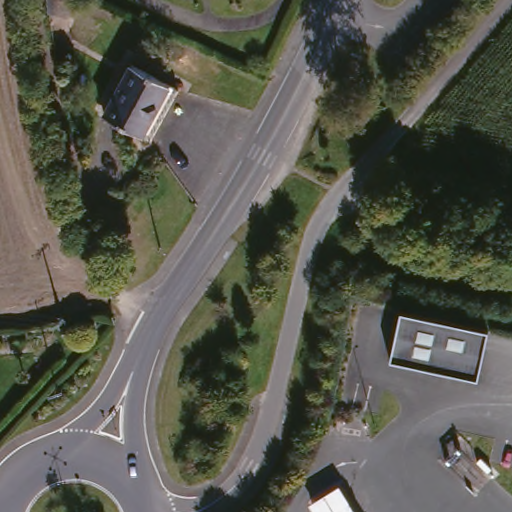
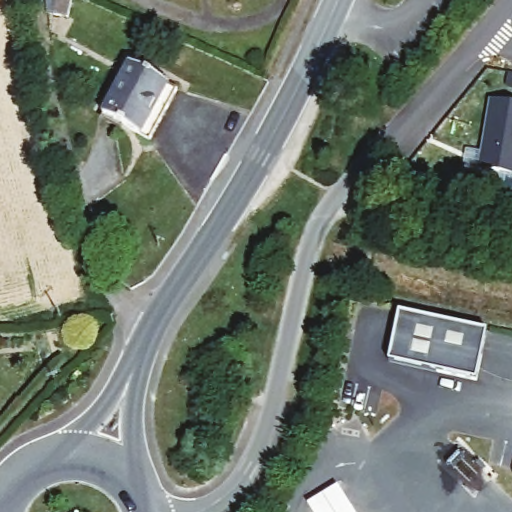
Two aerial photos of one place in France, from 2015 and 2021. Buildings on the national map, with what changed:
unchanged [(72,14),(69,32),(52,30),(54,11),(72,14)]
unchanged [(173,92),(147,137),(102,111),(127,65),(173,92)]
new [(491,100),(512,105),(512,175),(480,168),(491,100)]
unchanged [(393,310),(482,330),(472,378),(382,360),(393,310)]
unchanged [(332,486),(348,512),(308,512),(303,505),(332,486)]

